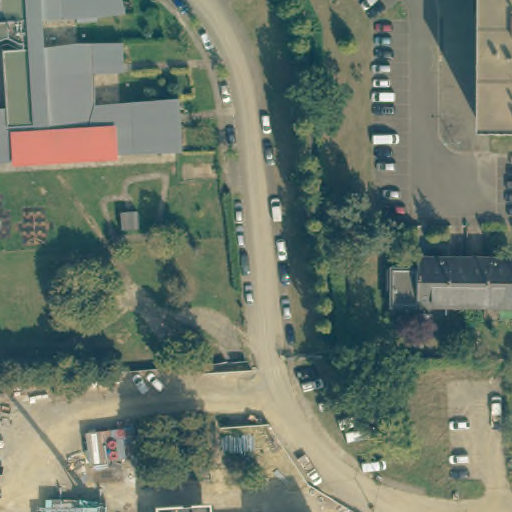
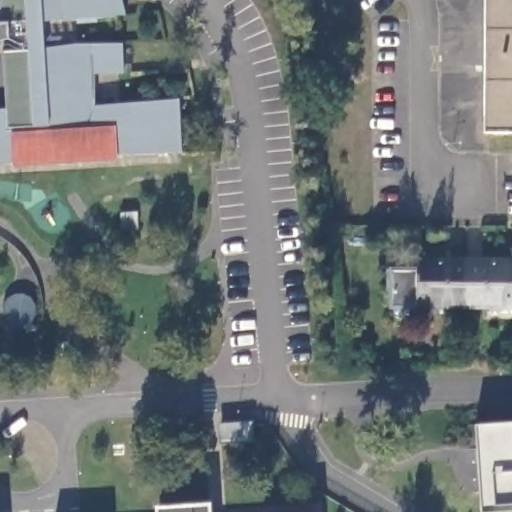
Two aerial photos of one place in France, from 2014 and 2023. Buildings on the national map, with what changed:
unchanged [(0,166),(0,110),(7,110),(2,52),(24,51),(23,46),(20,46),(11,41),(6,41),(2,43),(0,44),(0,24),(1,24),(0,16),(0,0),(121,0),(126,18),(97,20),(97,24),(77,25),(79,21),(37,24),(39,48),(39,50),(77,45),(122,44),(124,74),(96,76),(96,107),(179,100),(182,153),(116,157),(116,155),(87,157),(54,159),(15,161),(15,164),(0,166)]
unchanged [(483,129),(485,0),(512,0),(512,129),(483,129)]
unchanged [(512,260),(512,307),(390,308),(390,291),(383,291),(383,271),(416,271),(416,260),(512,260)]
new [(488,512),(480,512),(473,425),(512,422),(512,510),(488,512)]
unchanged [(209,504),(209,512),(157,512),(157,507),(209,504)]

